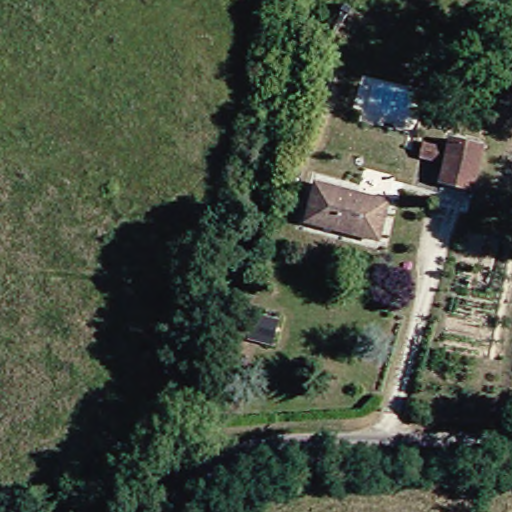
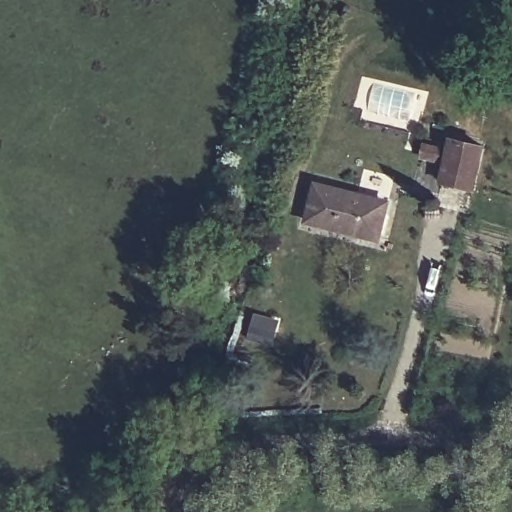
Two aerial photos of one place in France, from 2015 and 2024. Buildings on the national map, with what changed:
unchanged [(439,182),(446,144),(477,150),(471,187),(439,182)]
unchanged [(433,166),(414,162),(418,146),(437,151),(433,166)]
unchanged [(310,184),(349,193),(347,200),(378,207),(372,234),(302,221),(310,184)]

